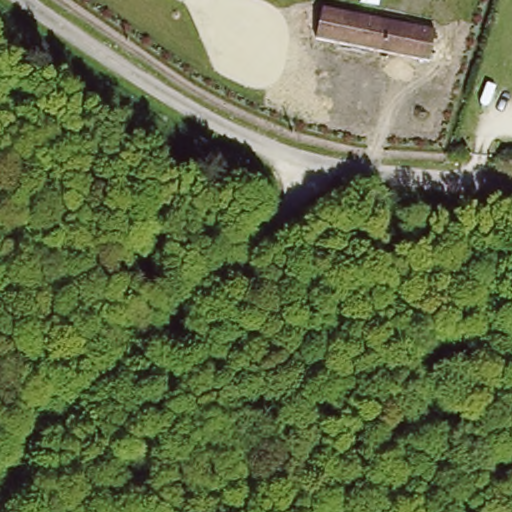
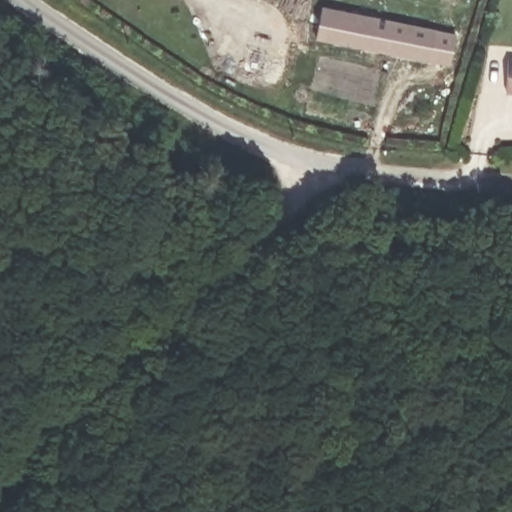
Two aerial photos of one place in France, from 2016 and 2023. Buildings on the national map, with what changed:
unchanged [(453,34),(446,64),(313,38),(319,7),(453,34)]

